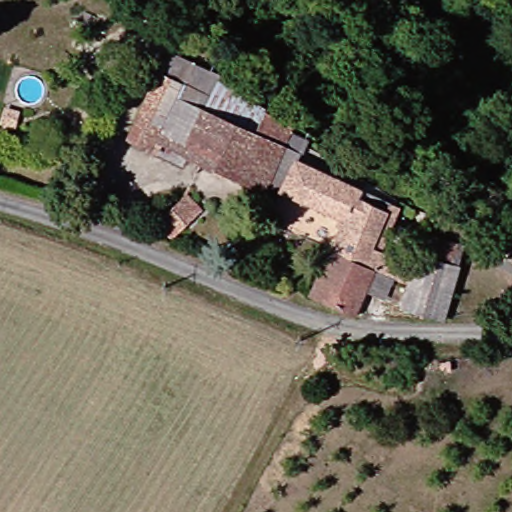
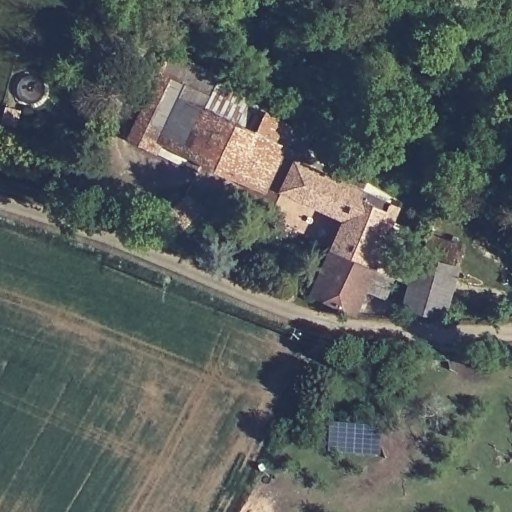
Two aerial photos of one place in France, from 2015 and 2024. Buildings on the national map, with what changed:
unchanged [(141,112),(186,51),(223,74),(222,81),(304,130),(265,188),(165,126),(157,138),(136,125),(141,112)]
unchanged [(352,225),(290,191),(307,159),(398,206),(380,250),(387,257),(382,272),(339,250),(352,225)]
unchanged [(183,194),(197,211),(168,238),(155,221),(183,194)]
unchanged [(260,230),(269,240),(261,250),(251,244),(260,230)]
unchanged [(464,246),(443,322),(405,312),(423,252),(427,254),(434,234),(464,246)]
unchanged [(339,250),(382,272),(360,316),(316,297),(339,250)]
new [(329,451),(332,423),(384,427),(381,455),(329,451)]

